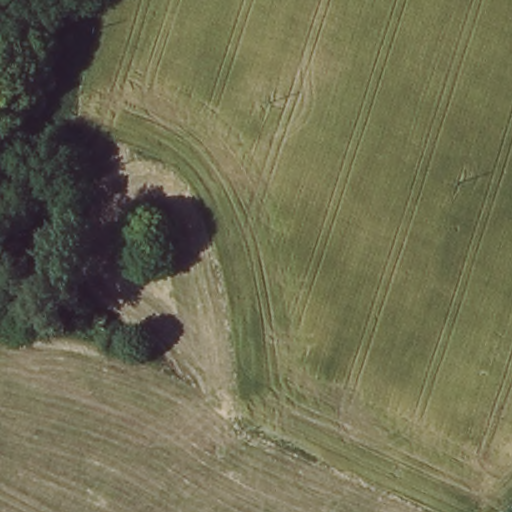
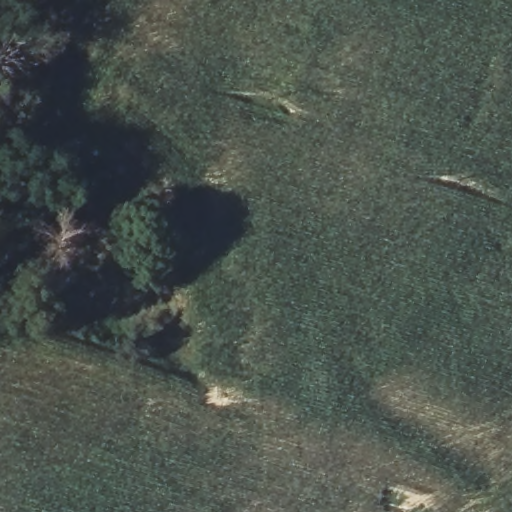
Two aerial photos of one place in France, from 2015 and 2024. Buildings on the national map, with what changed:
[]

